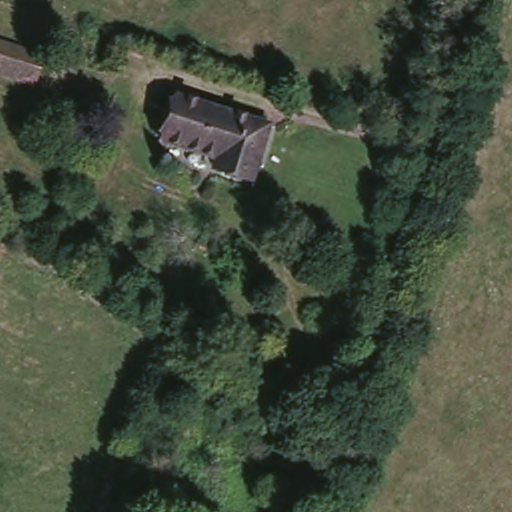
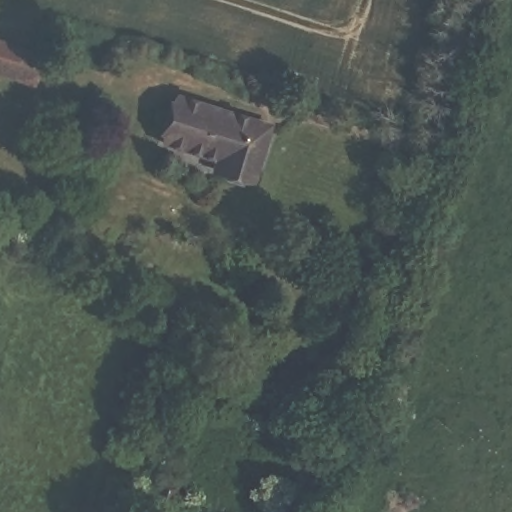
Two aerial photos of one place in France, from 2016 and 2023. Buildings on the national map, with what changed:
unchanged [(33,82),(14,77),(0,73),(0,39),(25,47),(45,53),(33,82)]
unchanged [(273,125),(256,179),(217,167),(220,157),(169,141),(181,96),(273,125)]
unchanged [(177,512),(169,512),(155,509),(163,479),(184,483),(177,512)]
unchanged [(105,512),(103,512),(104,511),(105,512)]

